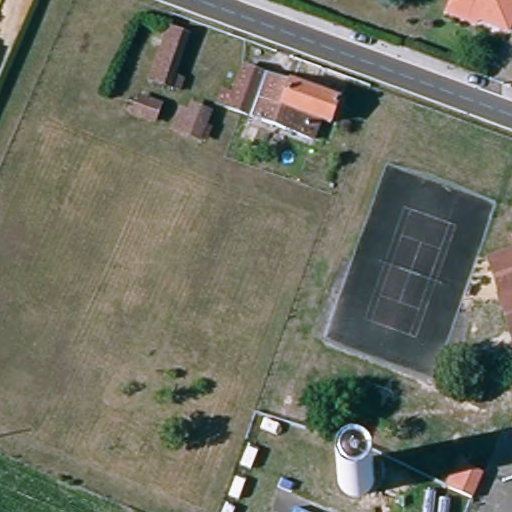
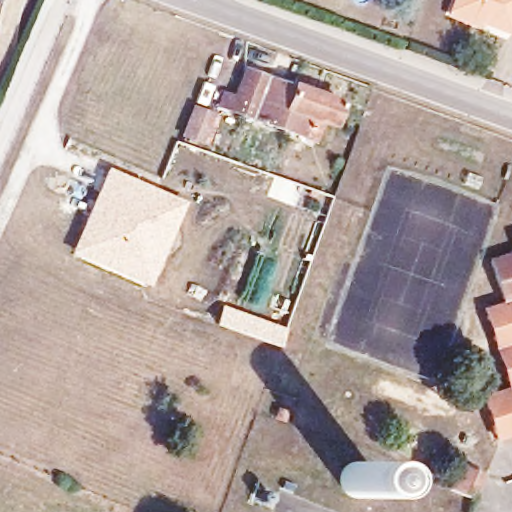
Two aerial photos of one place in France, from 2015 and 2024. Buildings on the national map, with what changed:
unchanged [(453,9),(457,0),(512,0),(512,29),(453,9)]
demolished [(176,85),(160,78),(180,32),(194,39),(176,85)]
unchanged [(333,126),(323,122),(317,140),(221,104),(227,91),(240,96),(252,67),(342,102),(333,126)]
demolished [(135,104),(156,114),(151,128),(128,119),(135,104)]
unchanged [(183,107),(191,108),(196,104),(219,116),(205,146),(171,133),(183,107)]
new [(106,167),(185,202),(146,288),(70,253),(106,167)]
unchanged [(502,304),(488,264),(512,255),(512,301),(502,304)]
unchanged [(502,304),(512,301),(512,331),(502,304)]
new [(221,305),(285,327),(277,348),(214,324),(221,305)]

